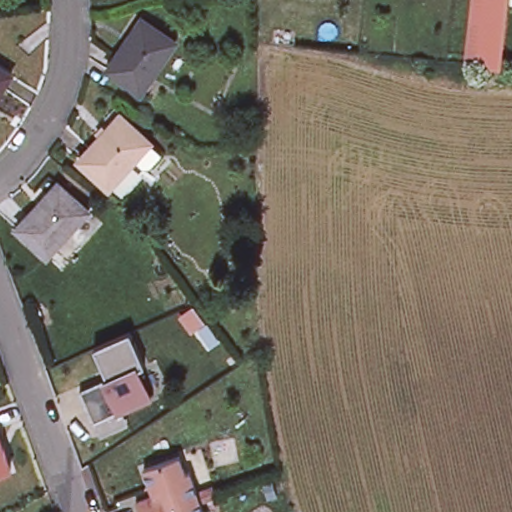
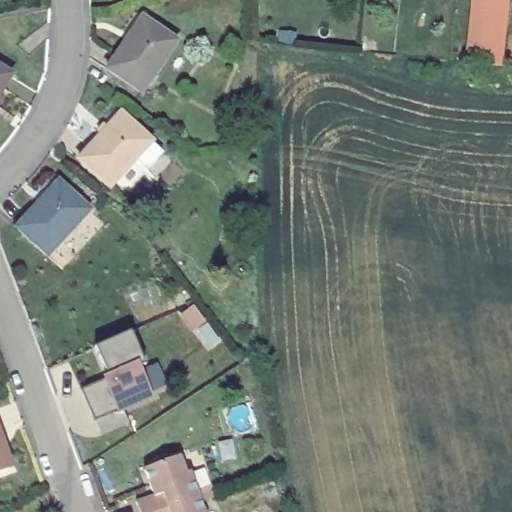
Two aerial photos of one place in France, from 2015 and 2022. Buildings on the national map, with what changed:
unchanged [(477,0),(501,0),(496,64),(470,62),(477,0)]
unchanged [(101,69),(137,16),(173,41),(138,93),(101,69)]
unchanged [(14,73),(0,97),(0,65),(14,73)]
unchanged [(113,194),(102,184),(101,185),(71,158),(113,112),(143,139),(142,141),(153,151),(113,194)]
unchanged [(89,214),(46,259),(16,231),(58,186),(89,214)]
unchanged [(130,426),(99,437),(81,392),(104,383),(108,377),(96,349),(133,332),(147,366),(143,370),(155,403),(126,414),(130,426)]
unchanged [(0,476),(0,441),(10,472),(0,476)]
unchanged [(129,502),(148,496),(138,468),(173,456),(179,473),(184,472),(191,491),(208,486),(209,492),(211,498),(195,503),(198,512),(133,512),(129,502)]

